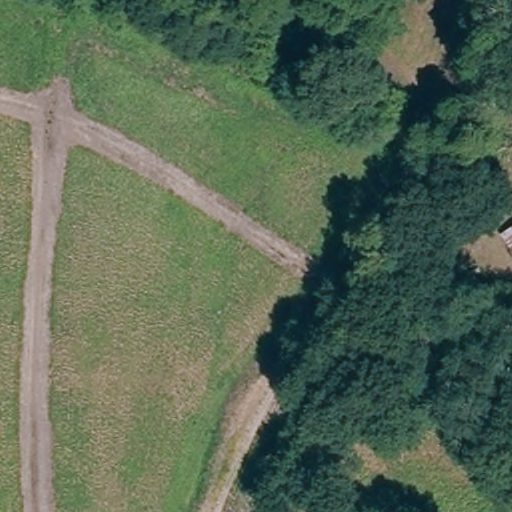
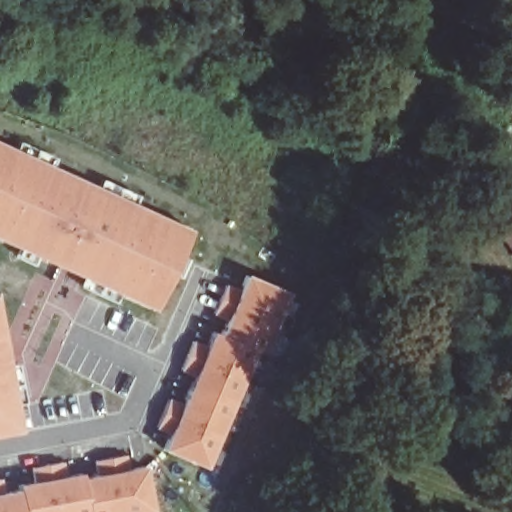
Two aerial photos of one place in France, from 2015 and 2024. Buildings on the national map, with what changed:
new [(190,230),(156,311),(0,239),(0,143),(190,230)]
unchanged [(512,230),(512,250),(502,236),(512,230)]
new [(161,450),(171,432),(156,428),(169,399),(182,402),(195,375),(179,370),(191,341),(206,347),(213,331),(220,335),(226,318),(212,313),(224,283),(239,288),(245,276),(290,292),(263,352),(256,350),(206,468),(161,450)]
new [(22,432),(0,436),(0,317),(22,432)]
new [(1,492),(19,488),(17,483),(32,481),(30,467),(62,462),(65,475),(82,472),(83,477),(98,473),(95,461),(126,455),(129,471),(146,466),(153,512),(150,512),(0,512),(0,482),(1,492)]

